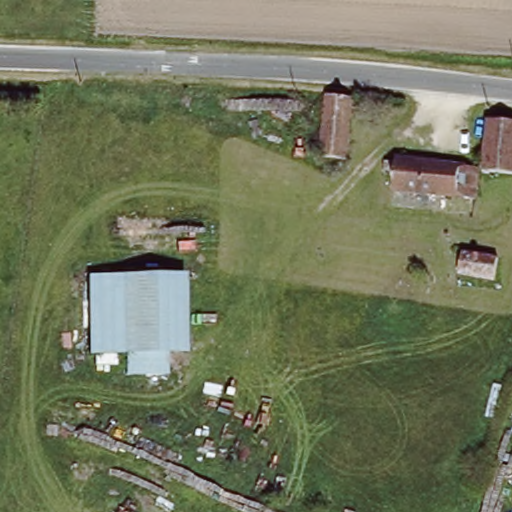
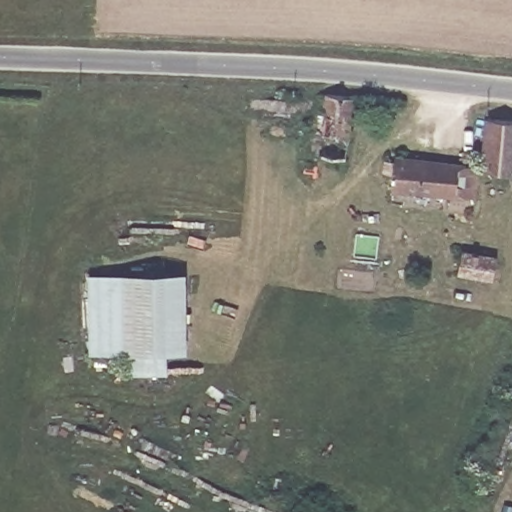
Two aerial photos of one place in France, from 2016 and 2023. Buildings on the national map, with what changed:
unchanged [(350,165),(322,163),(320,94),(354,97),(350,165)]
unchanged [(493,168),(486,167),(492,106),(512,110),(512,170),(493,168)]
unchanged [(456,196),(438,194),(419,192),(395,190),(396,173),(385,172),(387,156),(462,164),(457,196),(456,196)]
unchanged [(456,277),(458,249),(493,251),(490,280),(481,278),(456,277)]
unchanged [(129,373),(127,350),(90,354),(85,278),(106,277),(121,276),(160,273),(182,271),(187,325),(190,345),(166,347),(167,370),(129,373)]

